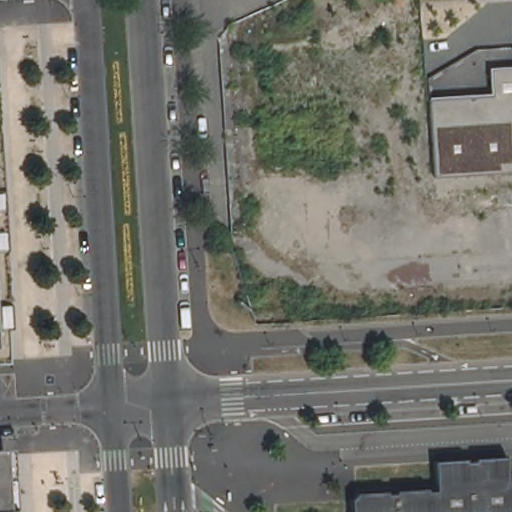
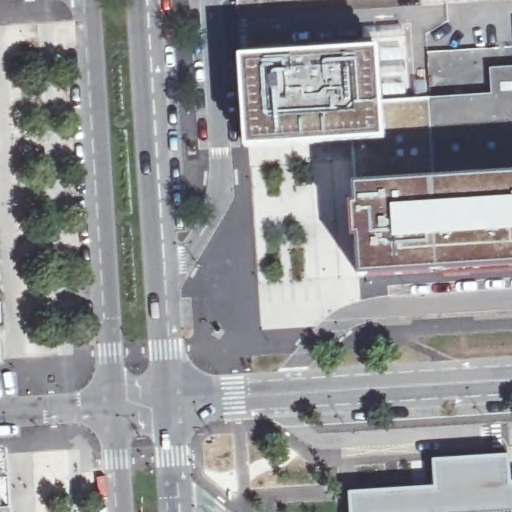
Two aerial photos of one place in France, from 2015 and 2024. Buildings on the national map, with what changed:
new [(239,56),(379,48),(383,101),(385,141),(351,142),(246,148),(239,56)]
unchanged [(437,181),(430,99),(493,95),(491,66),(512,66),(512,176),(437,181)]
new [(351,142),(385,141),(383,101),(430,99),(437,181),(354,186),(351,142)]
new [(361,276),(354,186),(437,181),(512,176),(512,266),(361,276)]
unchanged [(5,512),(0,512),(0,454),(1,454),(5,512)]
unchanged [(353,499),(356,499),(356,497),(357,497),(357,494),(389,492),(389,494),(398,494),(398,491),(429,489),(429,492),(438,491),(436,462),(468,460),(468,462),(477,462),(477,459),(509,457),(511,487),(512,486),(512,512),(353,512),(353,499)]

